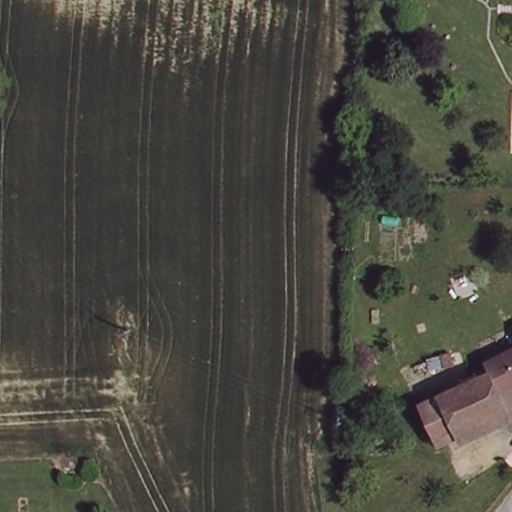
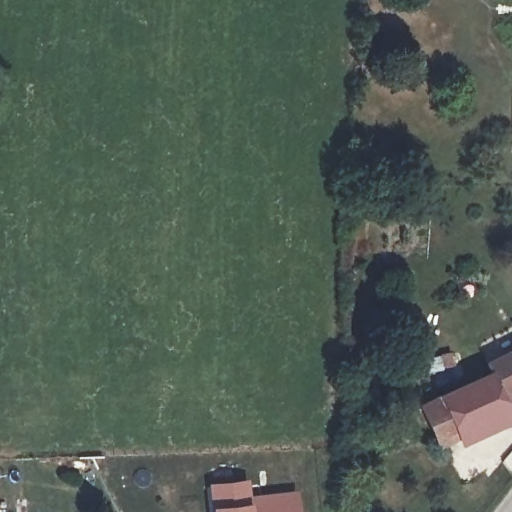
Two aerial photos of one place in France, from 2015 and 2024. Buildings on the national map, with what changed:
unchanged [(502,399),(487,374),(512,363),(512,394),(502,399)]
unchanged [(504,418),(435,449),(416,412),(480,382),(504,418)]
new [(249,479),(250,494),(252,512),(210,512),(207,484),(249,479)]
new [(298,490),(300,512),(252,512),(250,494),(298,490)]

